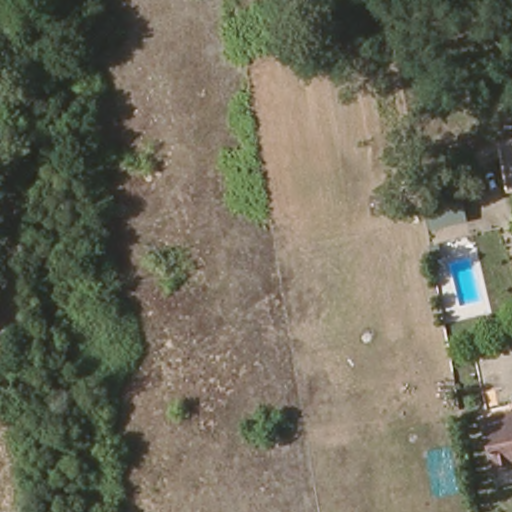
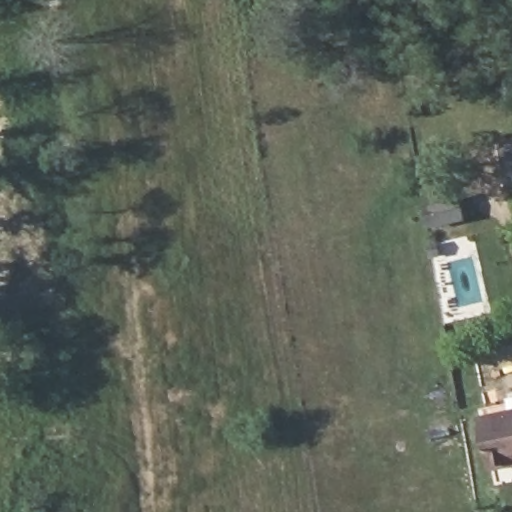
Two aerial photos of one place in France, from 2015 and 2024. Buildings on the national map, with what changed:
unchanged [(497,141),(512,138),(512,189),(506,190),(497,141)]
unchanged [(484,421),(512,414),(512,466),(494,470),(484,421)]

